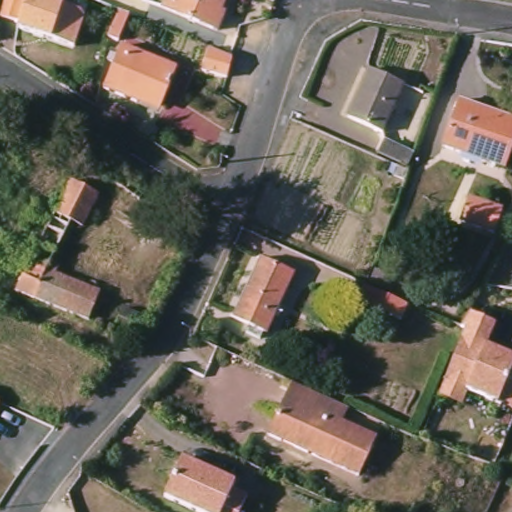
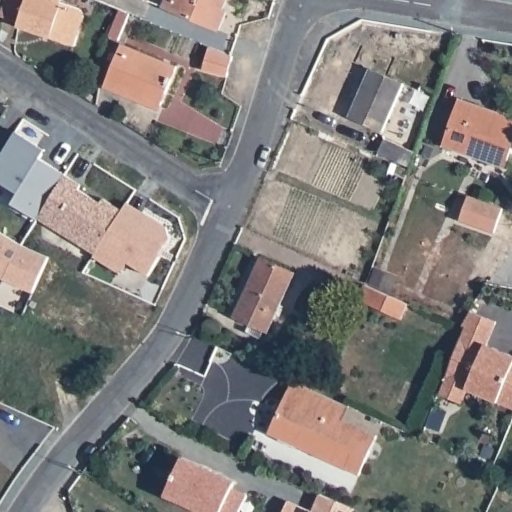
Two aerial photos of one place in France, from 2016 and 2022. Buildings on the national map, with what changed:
unchanged [(0,22),(0,9),(3,0),(25,0),(16,27),(0,22)]
unchanged [(84,9),(74,45),(16,27),(25,0),(62,0),(61,3),(84,9)]
unchanged [(166,11),(172,0),(233,0),(218,34),(166,11)]
unchanged [(125,45),(115,41),(126,14),(135,19),(125,45)]
new [(209,47),(231,56),(223,76),(200,66),(209,47)]
unchanged [(126,48),(182,71),(163,117),(108,93),(126,48)]
unchanged [(373,63),(409,79),(387,127),(352,111),(373,63)]
unchanged [(475,104),(474,109),(512,123),(512,157),(509,156),(505,167),(442,145),(459,99),(475,104)]
new [(96,254),(13,203),(19,193),(0,181),(0,157),(16,132),(45,150),(40,159),(81,185),(78,190),(101,204),(103,200),(123,211),(127,203),(166,227),(169,237),(149,277),(127,263),(120,274),(94,258),(96,254)]
unchanged [(390,132),(417,147),(410,163),(383,149),(390,132)]
demolished [(114,168),(143,186),(140,190),(144,193),(140,198),(108,176),(114,168)]
demolished [(99,192),(83,225),(71,220),(51,259),(59,264),(57,271),(100,289),(86,319),(16,290),(71,179),(99,192)]
unchanged [(471,202),(505,214),(496,238),(462,225),(471,202)]
new [(21,247),(48,259),(33,292),(0,276),(0,233),(21,247)]
unchanged [(245,338),(249,329),(234,322),(261,261),(295,277),(267,338),(264,337),(261,344),(245,338)]
unchanged [(364,290),(408,310),(402,324),(358,304),(364,290)]
demolished [(125,306),(147,315),(136,339),(114,329),(125,306)]
unchanged [(485,345),(512,356),(512,414),(463,390),(454,406),(435,394),(470,309),(494,320),(485,345)]
unchanged [(359,474),(271,434),(294,382),(319,393),(335,401),(349,407),(344,419),(377,434),(359,474)]
unchanged [(164,502),(181,464),(235,487),(232,494),(247,500),(242,512),(187,512),(164,502)]
new [(319,497),(352,511),(352,512),(312,512),(319,497)]
new [(287,502),(309,512),(283,512),(287,502)]

